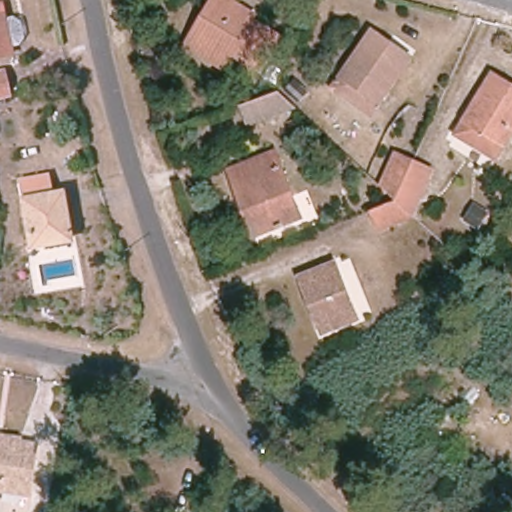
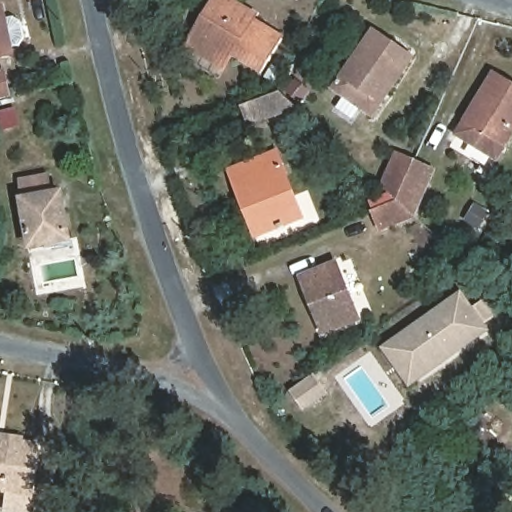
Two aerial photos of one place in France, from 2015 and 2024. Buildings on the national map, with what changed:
unchanged [(185,47),(203,16),(213,0),(233,0),(231,4),(247,14),(253,17),(251,22),(277,39),(259,70),(231,53),(228,57),(222,69),(185,47)]
unchanged [(12,15),(19,19),(22,34),(18,41),(9,43),(11,51),(0,54),(0,3),(3,17),(12,15)]
unchanged [(331,87),(371,30),(393,45),(410,57),(406,62),(369,114),(331,87)]
unchanged [(454,130),(490,69),(512,81),(512,127),(496,155),(454,130)]
unchanged [(0,76),(3,92),(0,93),(0,76)]
unchanged [(301,110),(253,127),(247,108),(276,98),(285,95),(301,110)]
unchanged [(233,182),(226,166),(276,147),(303,216),(263,231),(253,235),(233,182)]
unchanged [(421,222),(387,234),(380,212),(402,204),(386,189),(402,154),(421,162),(442,171),(438,180),(420,220),(421,222)]
unchanged [(67,241),(30,249),(22,211),(20,202),(58,194),(59,200),(67,241)]
unchanged [(356,316),(322,330),(301,277),(336,262),(356,316)]
new [(461,292),(473,307),(480,302),(493,318),(485,325),(490,331),(410,388),(380,348),(461,292)]
new [(314,377),(326,393),(306,408),(294,392),(314,377)]
unchanged [(0,494),(0,444),(38,450),(31,499),(0,494)]

